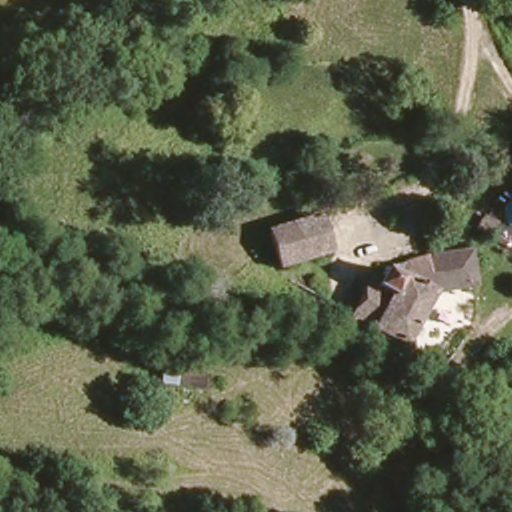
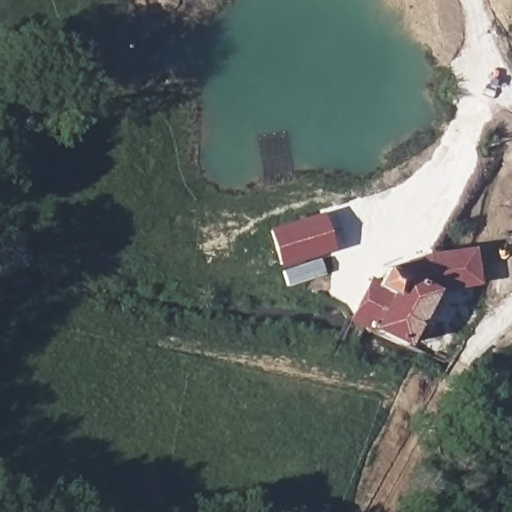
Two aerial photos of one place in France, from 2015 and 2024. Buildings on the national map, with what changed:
unchanged [(298,259),(300,270),(283,273),(271,231),(318,218),(327,253),(298,259)]
unchanged [(477,291),(435,293),(403,350),(367,334),(350,323),(373,275),(473,252),(477,291)]

